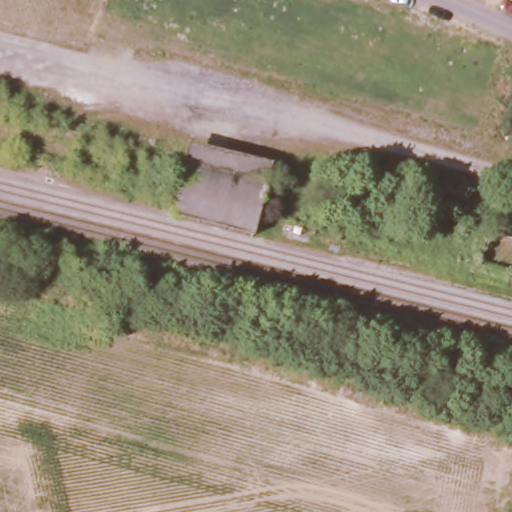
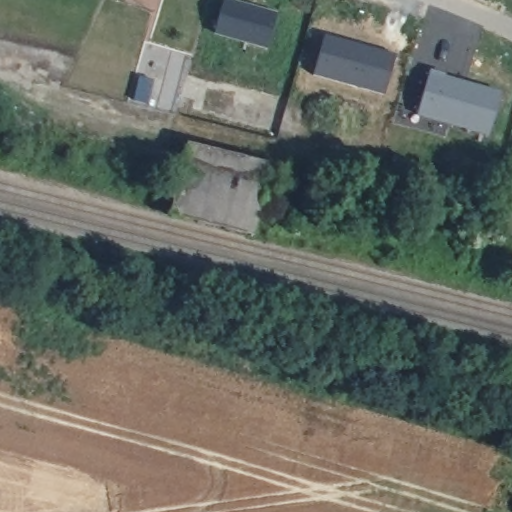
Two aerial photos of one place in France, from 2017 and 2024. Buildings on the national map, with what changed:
new [(214,36),(223,0),(225,0),(277,14),(266,50),(214,36)]
new [(385,95),(313,75),(323,35),(397,55),(385,95)]
new [(430,70),(445,75),(445,77),(500,93),(487,135),(417,115),(430,70)]
unchanged [(270,164),(255,239),(170,222),(189,148),(270,164)]

